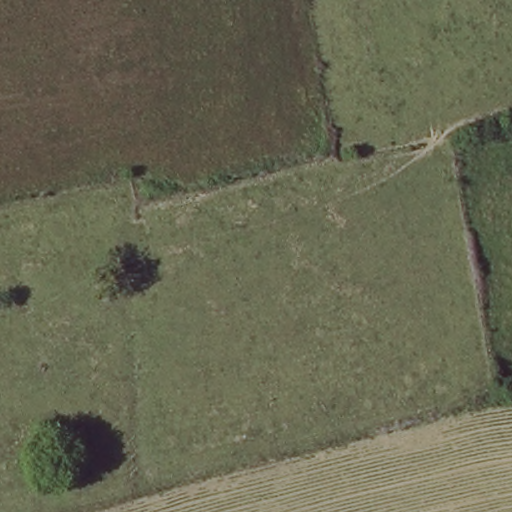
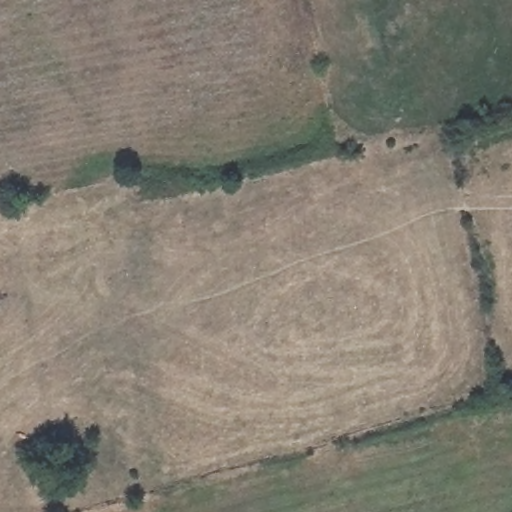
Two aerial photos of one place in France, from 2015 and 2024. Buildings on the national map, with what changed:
[]

